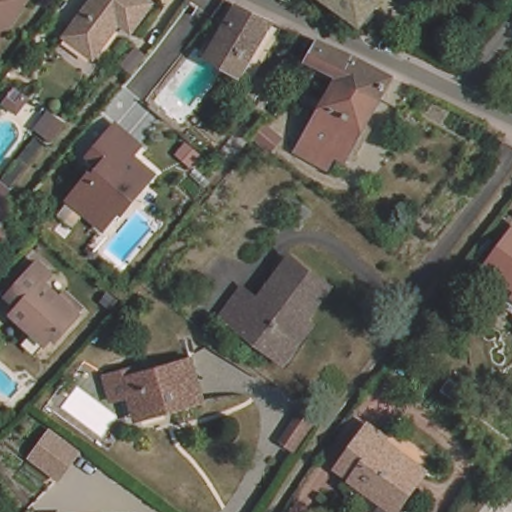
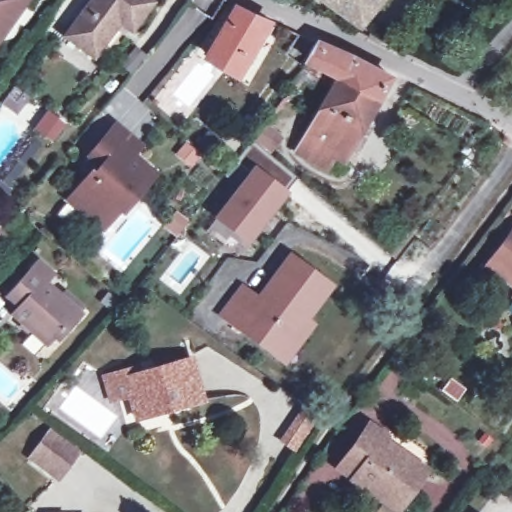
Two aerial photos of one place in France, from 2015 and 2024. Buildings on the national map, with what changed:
unchanged [(32,0),(12,29),(8,26),(0,38),(0,0),(32,0)]
unchanged [(130,29),(117,19),(112,26),(115,29),(94,56),(66,36),(93,0),(148,0),(151,1),(130,29)]
unchanged [(327,0),(386,0),(364,28),(327,0)]
unchanged [(230,28),(236,31),(249,10),(277,24),(248,74),(220,57),(214,54),(230,28)]
unchanged [(372,94),(339,76),(307,59),(317,40),(351,54),(390,75),(378,97),(372,94)]
unchanged [(363,138),(353,158),(336,149),(327,166),(296,150),(307,130),(310,131),(339,76),(372,94),(378,97),(363,124),(370,126),(363,138)]
unchanged [(93,223),(64,200),(85,174),(88,176),(97,166),(85,156),(110,125),(135,146),(127,156),(149,174),(135,192),(131,189),(114,210),(99,228),(93,223)]
new [(218,219),(251,177),(235,165),(253,141),(275,159),(299,179),(286,195),(249,243),(218,219)]
unchanged [(512,230),(512,284),(487,266),(512,230)]
unchanged [(279,356),(223,315),(242,289),(269,309),(275,299),(266,292),(291,258),(329,286),(305,318),(312,323),(296,344),(284,360),(279,356)]
unchanged [(51,331),(44,339),(13,309),(19,302),(9,292),(39,260),(51,270),(43,279),(60,295),(65,289),(81,305),(76,310),(78,312),(62,330),(56,336),(51,331)]
unchanged [(139,396),(120,402),(112,377),(132,371),(144,367),(146,375),(199,358),(212,400),(178,410),(146,420),(144,413),(139,396)]
unchanged [(305,414),(316,421),(297,451),(286,444),(305,414)]
unchanged [(395,512),(377,512),(372,508),(381,496),(351,474),(352,472),(338,462),(368,421),(383,432),(380,436),(423,467),(395,506),(398,509),(395,512)]
unchanged [(48,433),(76,454),(67,465),(57,479),(29,458),(39,444),(48,433)]
unchanged [(46,509),(64,510),(64,512),(45,512),(46,509)]

